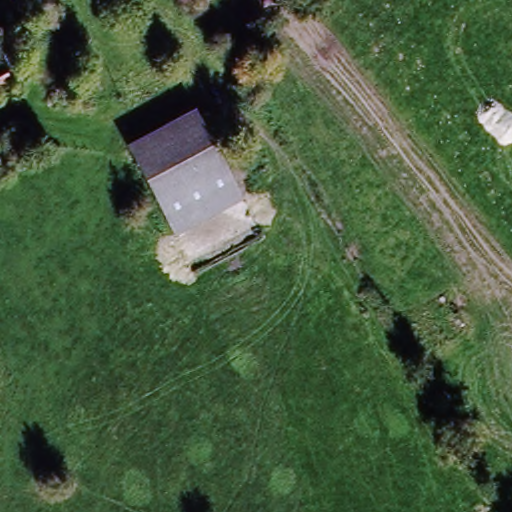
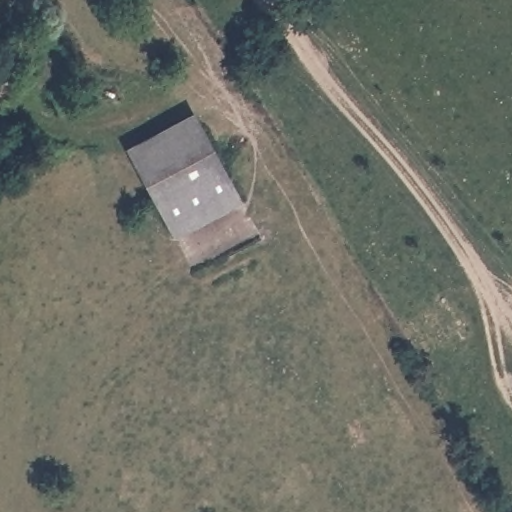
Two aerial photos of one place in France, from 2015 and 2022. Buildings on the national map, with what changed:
unchanged [(7,35),(20,57),(0,68),(10,83),(0,89),(0,39),(7,35)]
unchanged [(172,232),(132,160),(196,125),(236,196),(172,232)]

